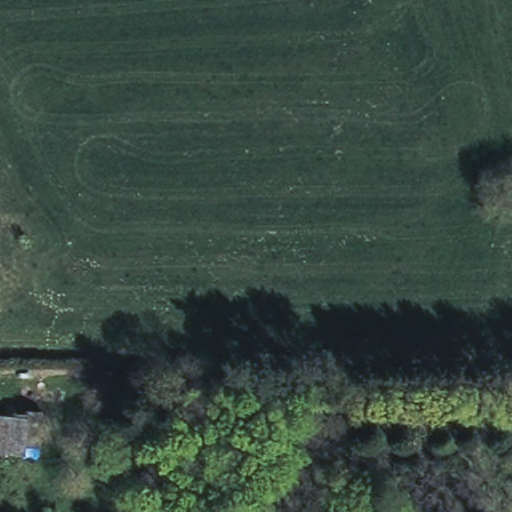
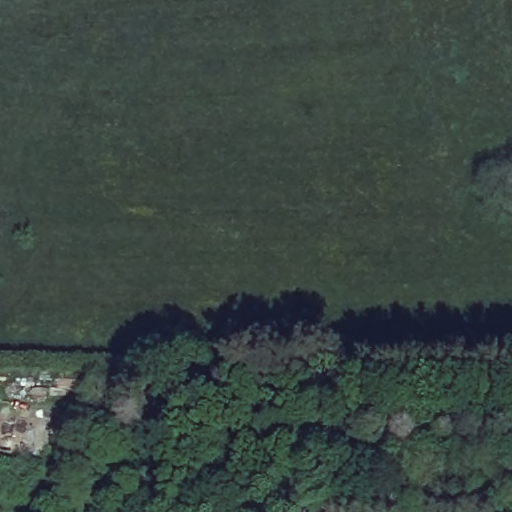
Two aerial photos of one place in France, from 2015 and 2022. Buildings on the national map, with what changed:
unchanged [(42,462),(0,458),(0,409),(46,413),(42,462)]

